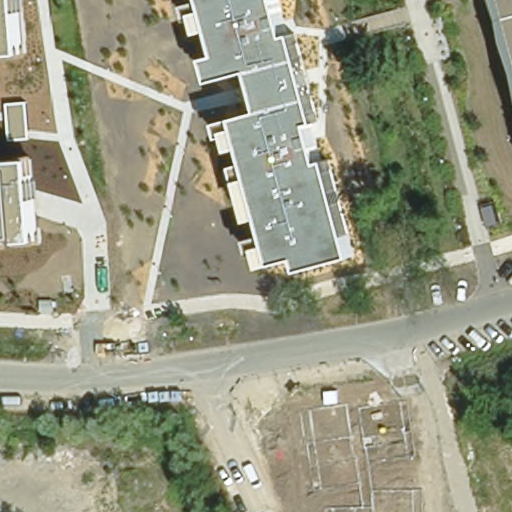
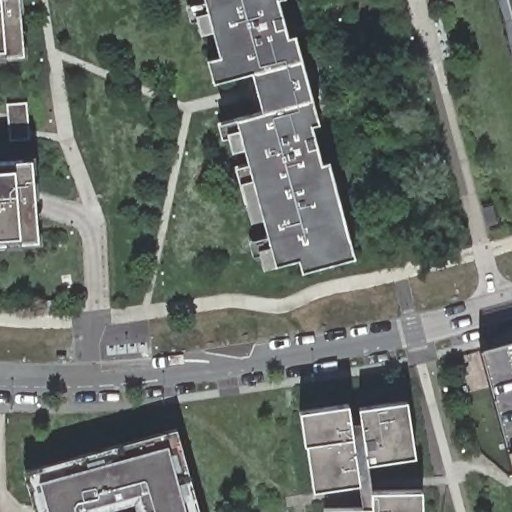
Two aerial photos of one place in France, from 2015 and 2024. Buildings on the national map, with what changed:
unchanged [(21,0),(25,54),(0,56),(0,0),(21,0)]
unchanged [(295,34),(318,121),(309,122),(321,161),(328,160),(355,257),(301,271),(297,259),(262,268),(221,120),(260,110),(249,72),(211,82),(189,0),(277,0),(286,34),(295,34)]
unchanged [(512,0),(512,46),(500,0),(512,0)]
unchanged [(0,243),(0,162),(34,159),(41,240),(0,243)]
new [(512,340),(512,473),(479,348),(512,340)]
new [(415,456),(367,462),(360,407),(406,400),(415,456)]
new [(349,403),(353,436),(359,484),(311,490),(305,443),(301,410),(349,403)]
new [(24,470),(176,427),(200,512),(35,512),(24,470)]
new [(326,508),(370,507),(369,490),(420,489),(420,512),(326,512),(326,508)]

